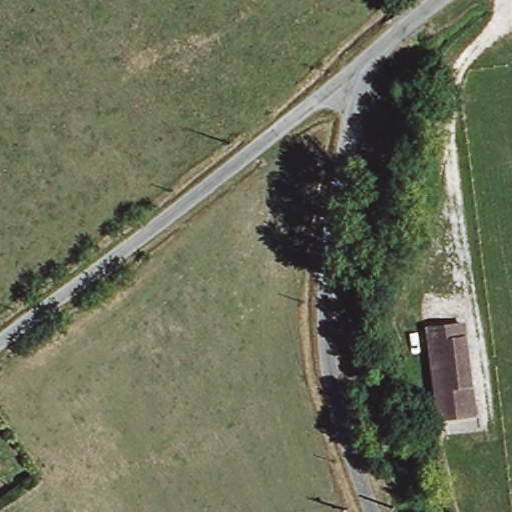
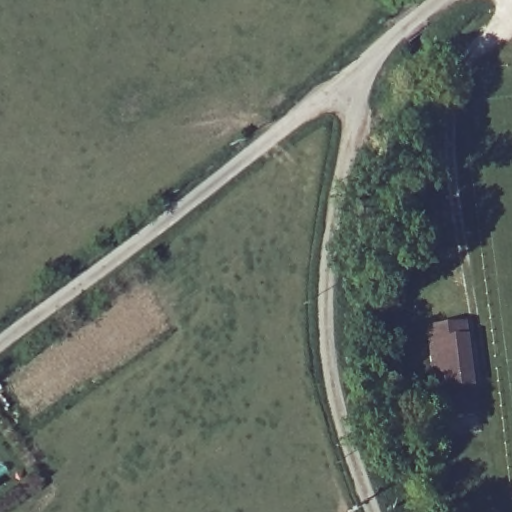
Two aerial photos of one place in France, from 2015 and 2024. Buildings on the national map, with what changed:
unchanged [(442,420),(431,327),(467,325),(468,341),(473,384),(476,415),(442,420)]

